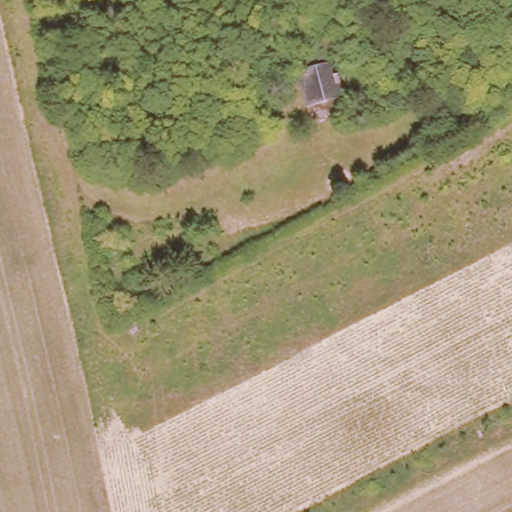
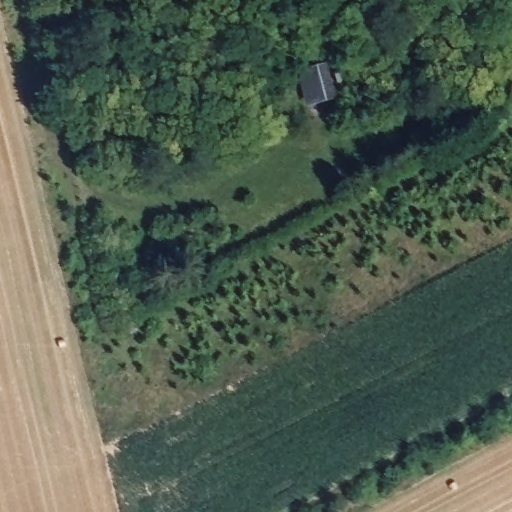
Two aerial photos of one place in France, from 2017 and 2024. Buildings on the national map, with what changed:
unchanged [(342,95),(310,108),(290,69),(317,58),(320,65),(327,63),(342,95)]

